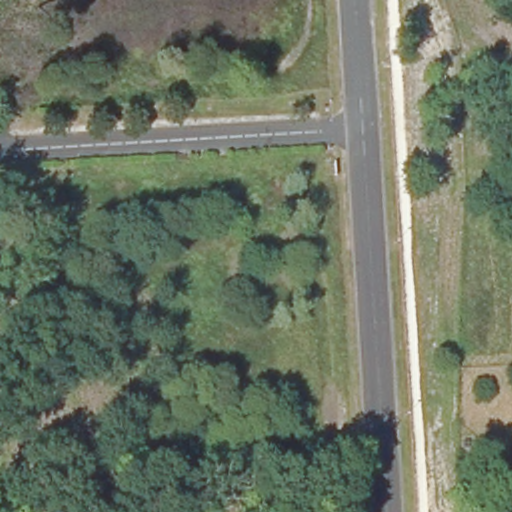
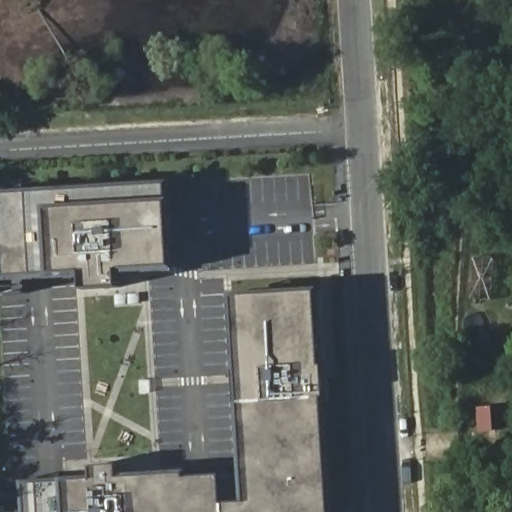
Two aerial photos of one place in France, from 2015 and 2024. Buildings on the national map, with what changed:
new [(1,295),(0,278),(0,194),(170,183),(175,268),(121,271),(122,288),(84,290),(83,274),(27,277),(28,294),(1,295)]
new [(245,502),(233,296),(319,290),(324,366),(326,365),(328,398),(326,398),(333,512),(26,512),(24,482),(93,478),(92,465),(121,464),(121,477),(188,473),(188,477),(224,475),(237,474),(238,495),(244,494),(245,502)]
new [(238,495),(244,494),(245,502),(226,503),(224,475),(237,474),(238,495)]

